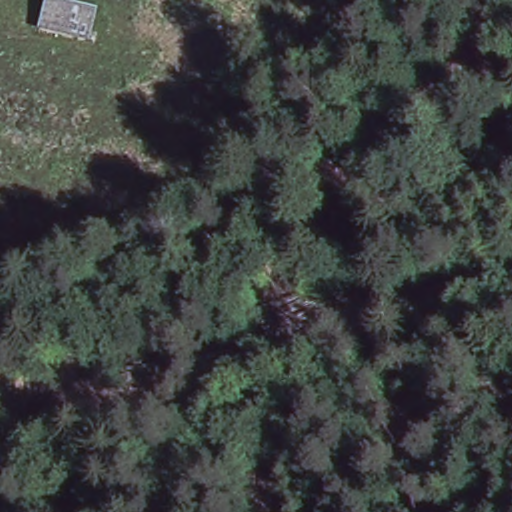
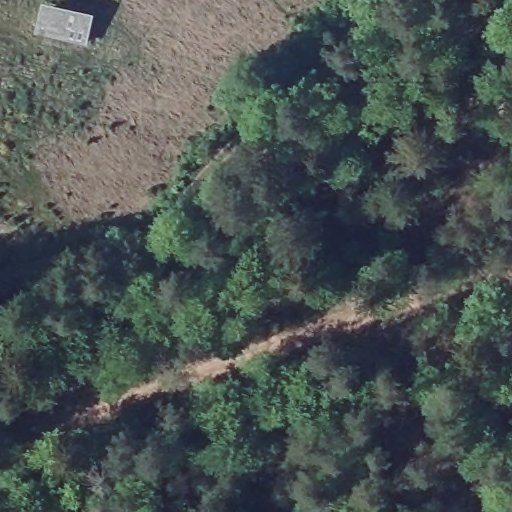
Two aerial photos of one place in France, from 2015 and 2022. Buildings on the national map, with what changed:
unchanged [(41,26),(47,5),(93,18),(88,39),(41,26)]

